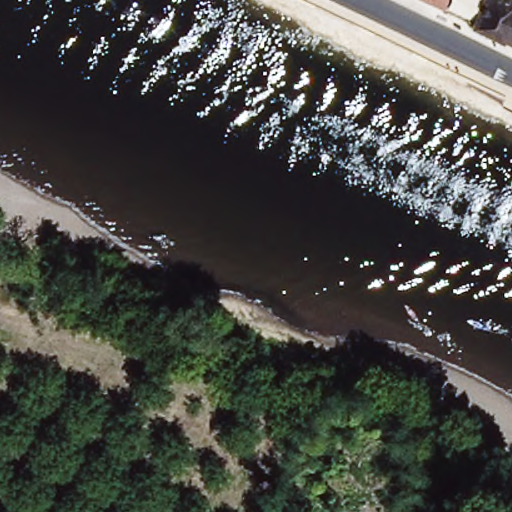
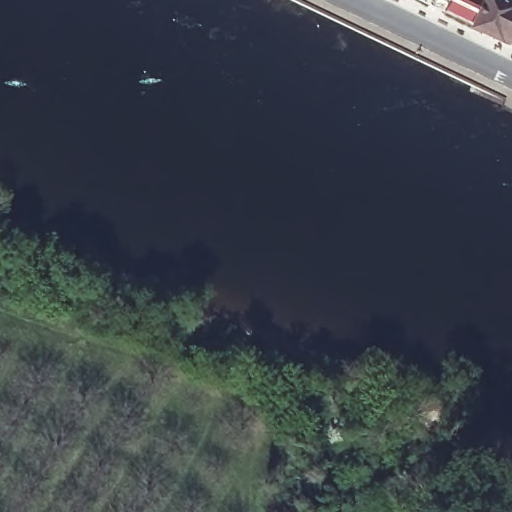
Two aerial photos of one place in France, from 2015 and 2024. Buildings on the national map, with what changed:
unchanged [(444,12),(420,0),(450,0),(444,12)]
unchanged [(472,21),(482,0),(512,0),(512,40),(500,34),(472,21)]

